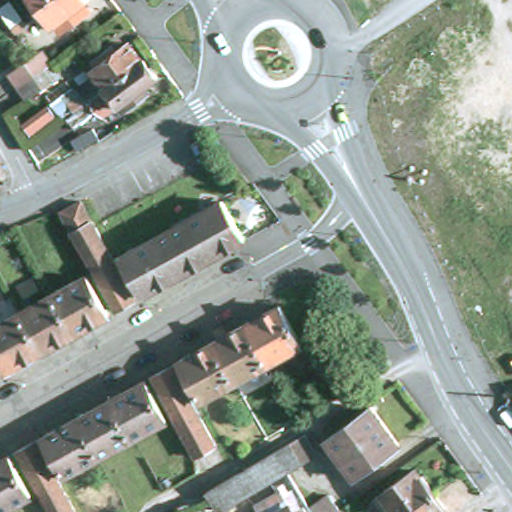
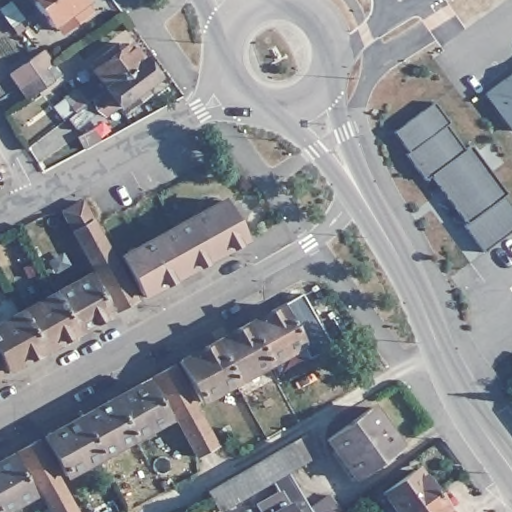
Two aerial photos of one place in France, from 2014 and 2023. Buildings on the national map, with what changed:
unchanged [(33,0),(48,0),(39,7),(33,0)]
unchanged [(85,1),(90,9),(77,18),(77,16),(61,27),(56,21),(52,25),(39,7),(48,0),(86,0),(85,1)]
unchanged [(19,31),(14,25),(9,18),(22,10),(27,16),(30,22),(19,31)]
unchanged [(95,69),(100,65),(96,60),(117,45),(120,50),(130,42),(143,61),(140,64),(109,87),(95,69)]
unchanged [(29,98),(20,86),(10,72),(43,48),(52,62),(58,69),(62,74),(29,98)]
unchanged [(160,77),(147,86),(152,92),(132,107),(128,102),(120,107),(106,89),(109,87),(140,64),(143,61),(145,59),(160,77)]
new [(512,74),(512,129),(486,93),(512,74)]
unchanged [(76,127),(69,117),(77,110),(73,104),(85,95),(90,101),(97,112),(76,127)]
new [(512,230),(484,251),(465,224),(467,222),(430,176),(425,180),(407,154),(411,151),(396,131),(435,104),(448,123),(467,149),(471,145),(507,193),(505,196),(512,206),(512,230)]
unchanged [(62,216),(72,212),(82,207),(92,226),(136,306),(126,312),(117,317),(74,237),(62,216)]
unchanged [(122,262),(223,207),(245,246),(144,301),(122,262)]
unchanged [(87,282),(109,321),(77,338),(55,300),(87,282)]
unchanged [(55,300),(77,338),(44,356),(22,317),(55,300)]
unchanged [(282,306),(304,347),(271,364),(249,324),(282,306)]
unchanged [(8,377),(0,362),(0,330),(22,317),(44,356),(8,377)]
unchanged [(249,324),(271,364),(238,382),(215,342),(249,324)]
unchanged [(202,402),(180,361),(215,342),(238,382),(202,402)]
unchanged [(167,402),(152,376),(162,372),(172,366),(186,392),(200,418),(215,445),(227,465),(216,471),(208,476),(197,456),(182,428),(167,402)]
unchanged [(145,381),(167,421),(135,438),(112,398),(145,381)]
unchanged [(112,398),(135,438),(102,457),(80,416),(112,398)]
unchanged [(329,437),(373,406),(400,445),(357,476),(329,437)]
unchanged [(67,476),(60,463),(44,436),(80,416),(102,457),(67,476)]
unchanged [(202,493),(218,483),(274,453),(301,436),(312,456),(285,472),(212,512),(202,493)]
unchanged [(32,478),(17,451),(26,446),(37,440),(52,467),(66,493),(76,512),(51,512),(47,505),(32,478)]
unchanged [(32,495),(1,512),(0,512),(0,460),(10,455),(32,495)]
unchanged [(415,471),(422,480),(425,477),(435,492),(408,512),(398,512),(384,493),(415,471)]
unchanged [(277,490),(285,505),(289,512),(255,512),(251,505),(277,490)]
unchanged [(444,511),(445,512),(408,512),(435,492),(447,510),(444,511)]
unchanged [(327,497),(334,509),(330,512),(309,512),(307,509),(327,497)]

